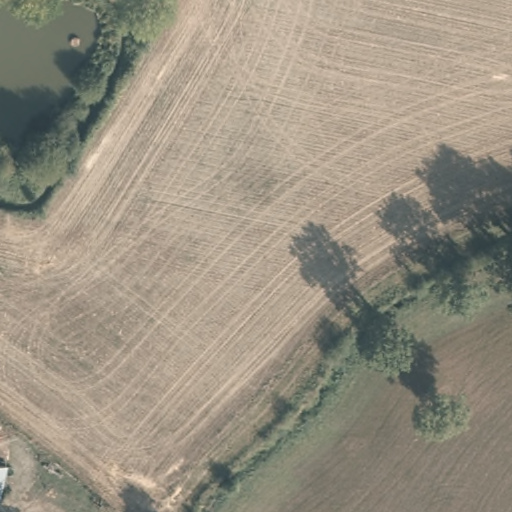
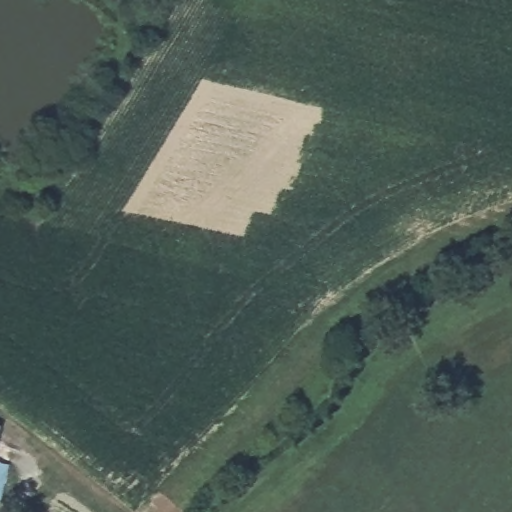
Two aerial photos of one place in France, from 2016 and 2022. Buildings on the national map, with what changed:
unchanged [(7,464),(0,499),(0,462),(7,464)]

